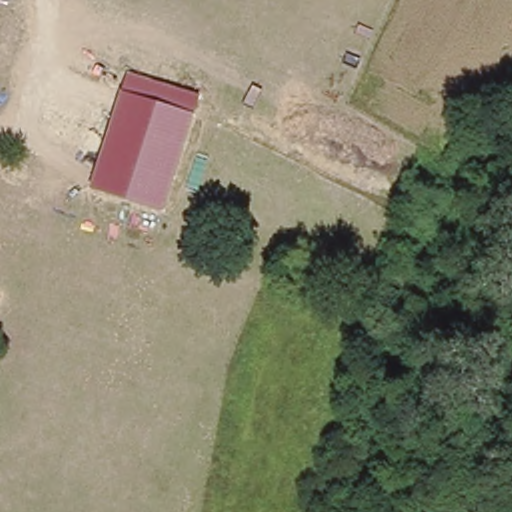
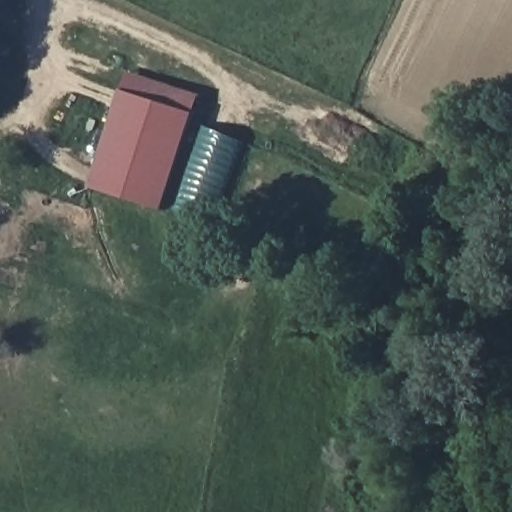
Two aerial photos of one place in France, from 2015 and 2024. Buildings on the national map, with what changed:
unchanged [(165,212),(89,189),(125,70),(201,94),(165,212)]
new [(214,221),(175,210),(204,126),(246,141),(214,221)]

